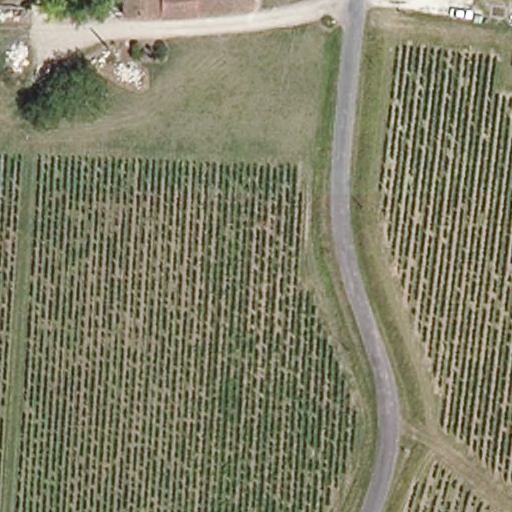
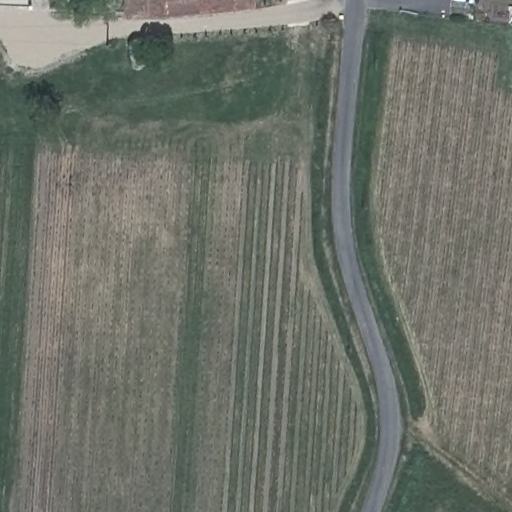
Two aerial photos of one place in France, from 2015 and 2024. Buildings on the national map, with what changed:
unchanged [(216,5),(200,8),(160,15),(128,17),(126,0),(241,0),(216,5)]
unchanged [(512,52),(504,51),(506,35),(512,36),(512,52)]

